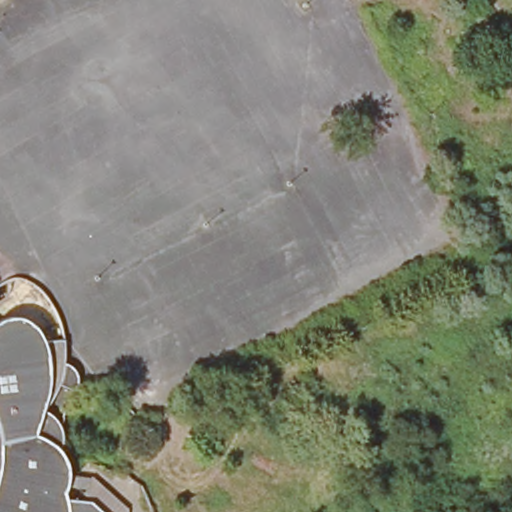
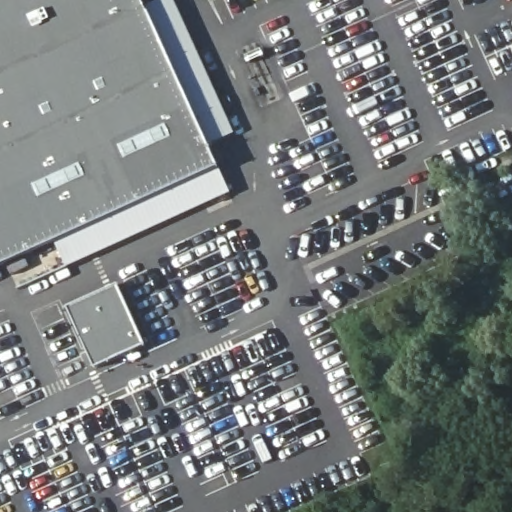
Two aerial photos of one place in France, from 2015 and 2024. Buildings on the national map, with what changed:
new [(215,162),(0,260),(0,0),(144,0),(215,162)]
new [(121,285),(149,347),(97,371),(69,309),(121,285)]
demolished [(1,313),(6,312),(11,311),(17,310),(25,311),(30,313),(35,316),(41,323),(45,328),(47,333),(67,332),(70,342),(70,356),(66,367),(64,375),(60,383),(56,391),(50,400),(45,409),(44,414),(42,417),(39,422),(37,425),(44,428),(46,430),(50,433),(55,437),(58,441),(62,446),(65,454),(67,463),(67,470),(65,479),(62,487),(66,495),(86,497),(106,512),(0,512),(0,313),(1,313)]

